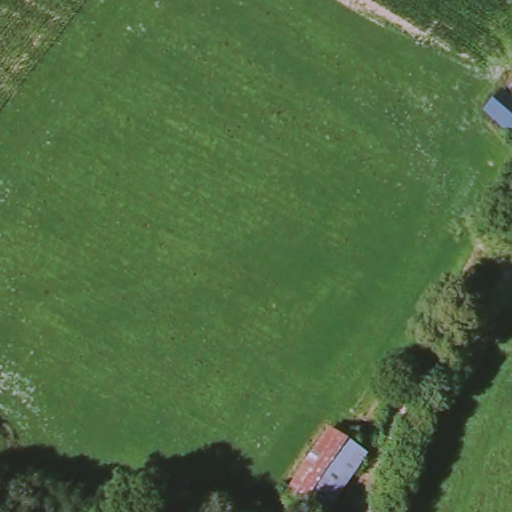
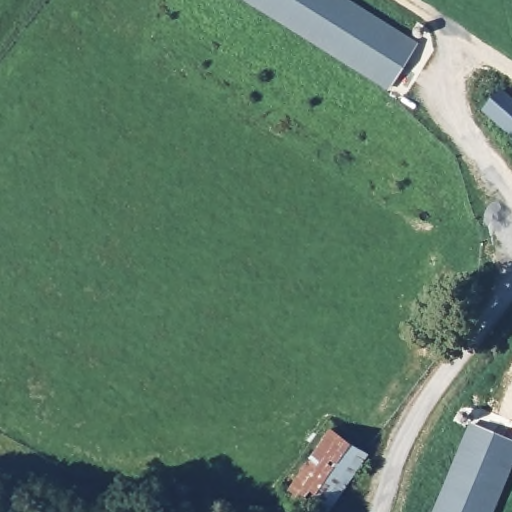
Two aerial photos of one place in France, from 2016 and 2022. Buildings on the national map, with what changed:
new [(413,33),(414,29),(415,27),(417,26),(420,26),(423,28),(424,30),(424,33),(422,36),(417,41),(389,90),(244,0),(352,0),(412,38),(413,33)]
unchanged [(512,125),(492,108),(506,88),(512,93),(512,125)]
new [(472,425),(512,440),(512,471),(495,512),(435,512),(472,425)]
unchanged [(368,452),(335,512),(322,512),(293,496),(332,430),(368,452)]

